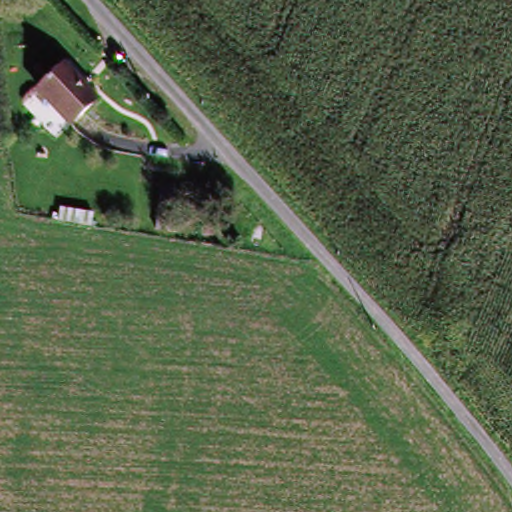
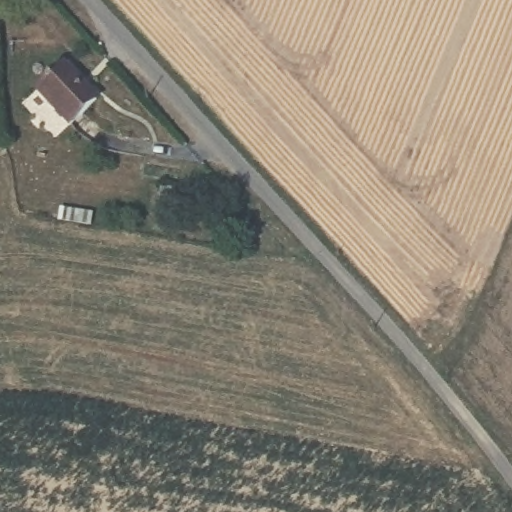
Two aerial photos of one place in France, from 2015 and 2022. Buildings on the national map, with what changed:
unchanged [(92,100),(65,125),(35,92),(61,66),(92,100)]

